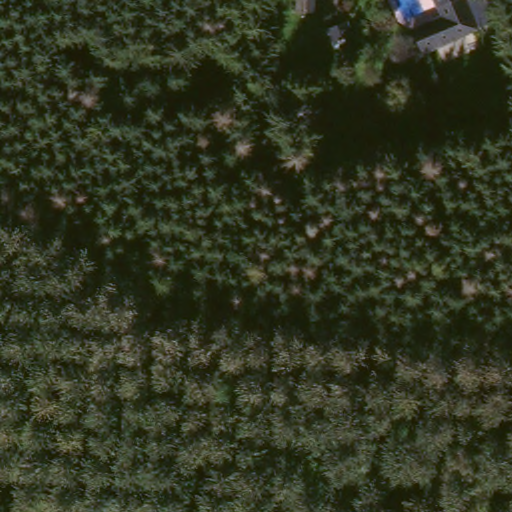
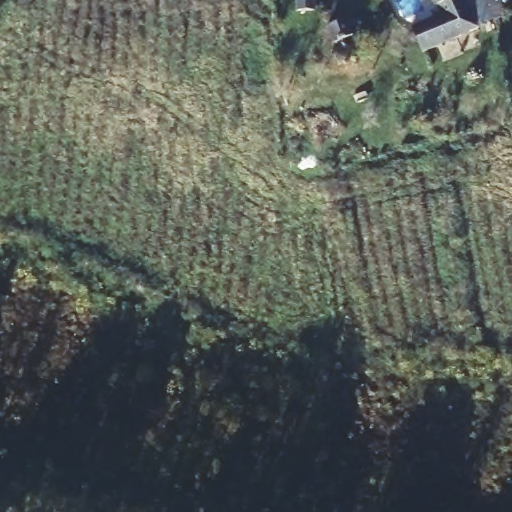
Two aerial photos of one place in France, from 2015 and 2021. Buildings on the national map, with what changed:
unchanged [(321,18),(303,19),(302,0),(321,0),(321,18)]
unchanged [(423,55),(411,28),(436,17),(429,0),(464,0),(478,30),(423,55)]
unchanged [(368,11),(375,31),(358,37),(351,16),(368,11)]

